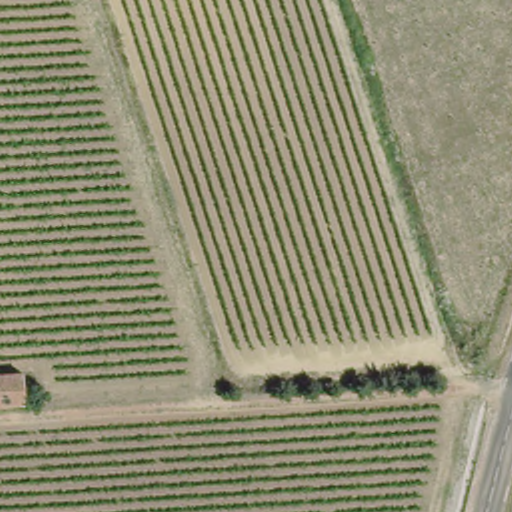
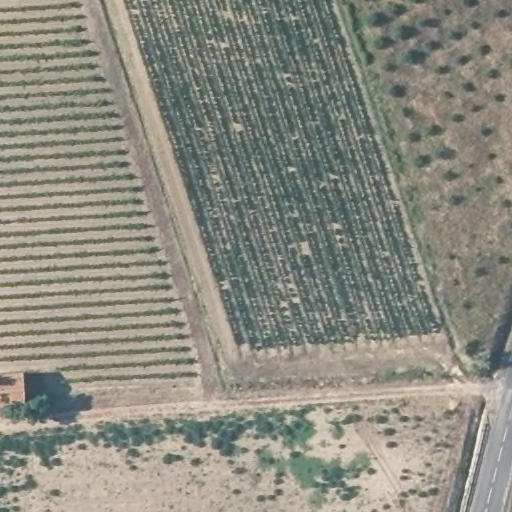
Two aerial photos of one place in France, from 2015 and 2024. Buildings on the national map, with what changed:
unchanged [(21,403),(0,403),(0,371),(21,372),(21,403)]

